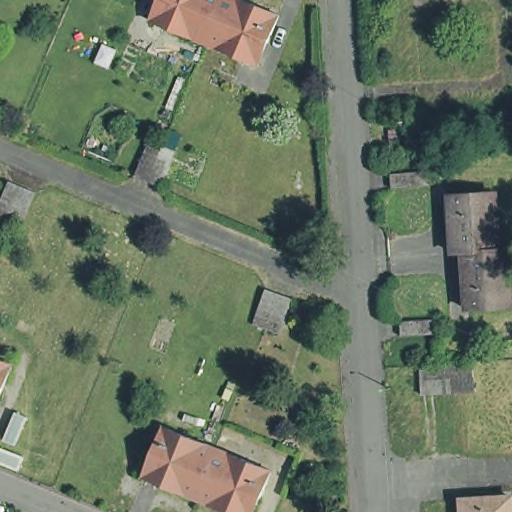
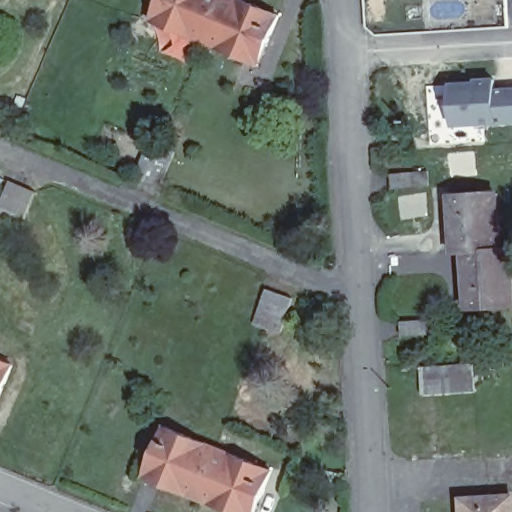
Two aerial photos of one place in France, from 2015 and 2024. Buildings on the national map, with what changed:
unchanged [(160,0),(222,0),(206,38),(153,16),(160,0)]
unchanged [(261,60),(206,38),(222,0),(250,0),(281,12),(261,60)]
new [(494,77),(494,88),(512,87),(512,124),(497,125),(453,127),(449,83),(475,81),(474,78),(494,77)]
unchanged [(398,141),(387,141),(387,130),(398,129),(398,141)]
unchanged [(178,151),(163,186),(139,175),(154,141),(178,151)]
unchanged [(427,186),(389,187),(389,172),(426,171),(427,186)]
unchanged [(0,220),(0,214),(12,186),(38,197),(25,230),(0,220)]
unchanged [(504,252),(512,252),(512,308),(473,308),(469,253),(459,253),(457,197),(501,196),(504,252)]
unchanged [(296,305),(283,340),(256,329),(269,295),(296,305)]
unchanged [(434,335),(398,337),(397,323),(433,321),(434,335)]
unchanged [(13,367),(0,397),(0,362),(13,367)]
unchanged [(478,393),(427,398),(424,370),(475,365),(478,393)]
unchanged [(156,472),(174,424),(228,447),(209,494),(156,472)]
unchanged [(282,469),(264,512),(251,512),(209,494),(228,447),(282,469)]
unchanged [(463,502),(512,499),(512,512),(463,512),(463,502)]

